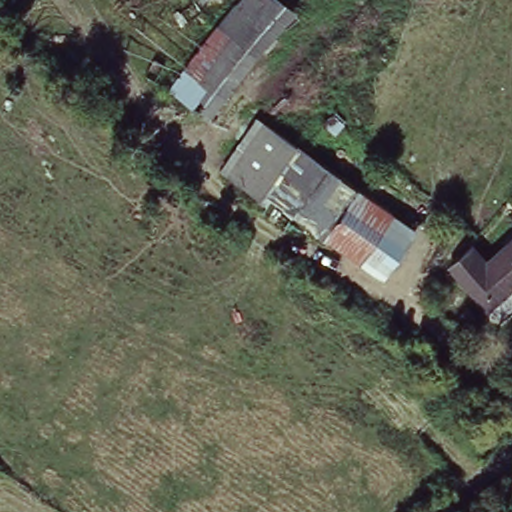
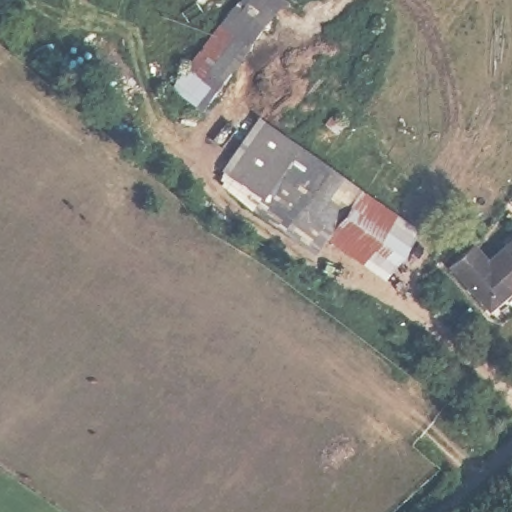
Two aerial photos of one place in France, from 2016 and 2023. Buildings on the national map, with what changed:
unchanged [(291,51),(270,34),(210,113),(172,84),(237,0),(285,0),(315,23),(291,51)]
unchanged [(347,119),(342,126),(337,132),(327,124),(337,110),(347,119)]
unchanged [(417,224),(383,274),(308,218),(297,232),(253,202),(261,189),(222,166),(257,111),(417,224)]
unchanged [(451,266),(473,246),(487,261),(512,239),(512,287),(490,308),(451,266)]

